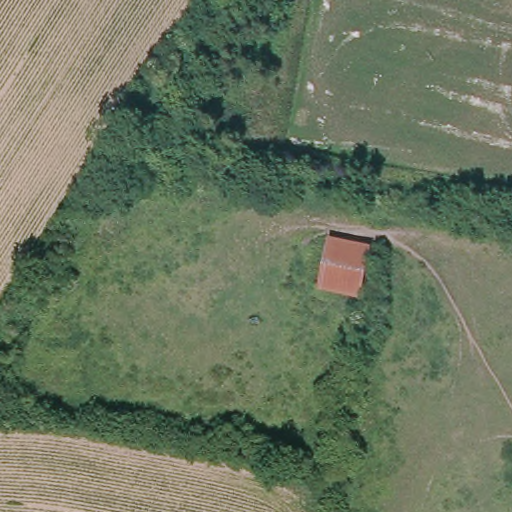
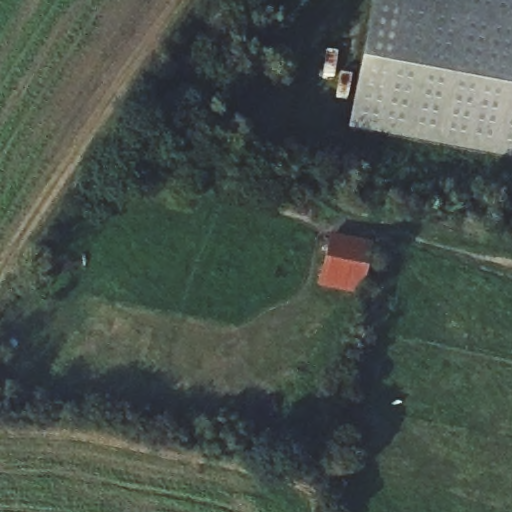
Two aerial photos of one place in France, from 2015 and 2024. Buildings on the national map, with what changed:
new [(512,165),(346,136),(372,0),(512,0),(512,165)]
unchanged [(329,234),(368,245),(358,297),(315,286),(329,234)]

